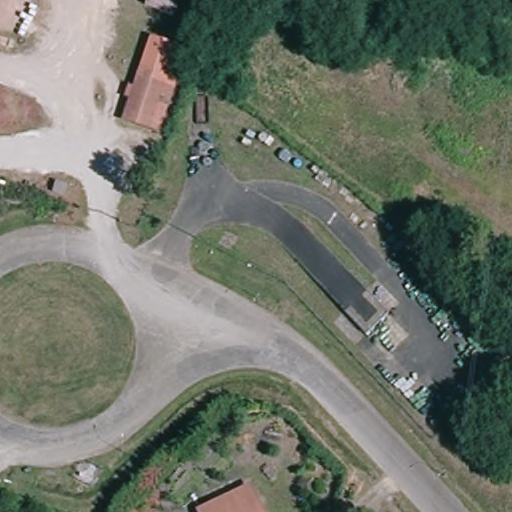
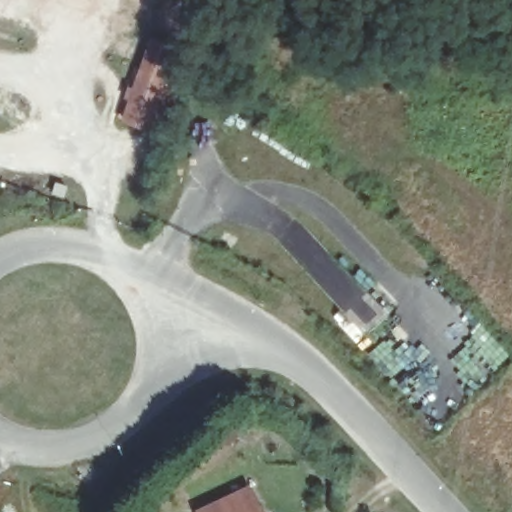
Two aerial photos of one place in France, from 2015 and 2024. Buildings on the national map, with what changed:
unchanged [(129,104),(147,52),(175,65),(154,114),(129,104)]
unchanged [(200,505),(239,490),(251,485),(262,512),(202,512),(200,505)]

